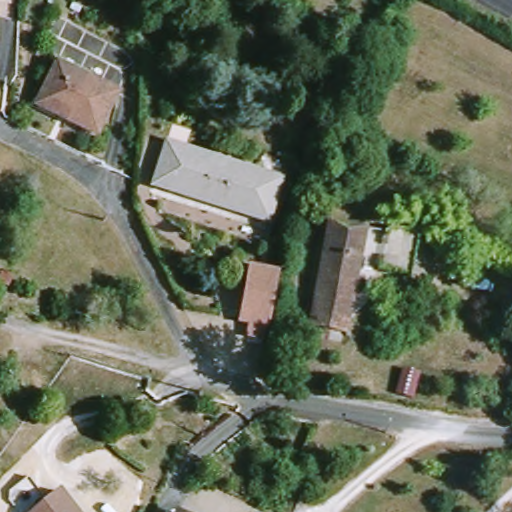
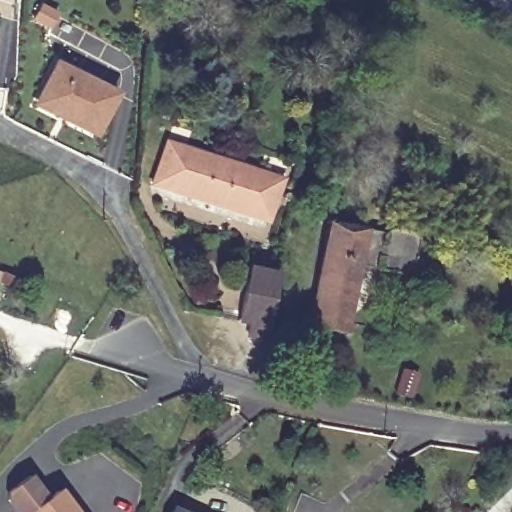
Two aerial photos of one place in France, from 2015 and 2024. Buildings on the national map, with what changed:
unchanged [(34,104),(55,62),(85,77),(82,82),(113,97),(93,137),(61,122),(32,108),(34,104)]
unchanged [(216,183),(210,205),(167,191),(151,185),(164,146),(221,165),(216,183)]
unchanged [(280,185),(267,224),(210,205),(216,183),(221,165),(280,185)]
unchanged [(415,242),(408,277),(356,267),(344,332),(309,326),(328,224),(415,242)]
unchanged [(276,272),(265,331),(237,325),(248,266),(276,272)]
unchanged [(70,512),(36,512),(57,496),(70,512)]

